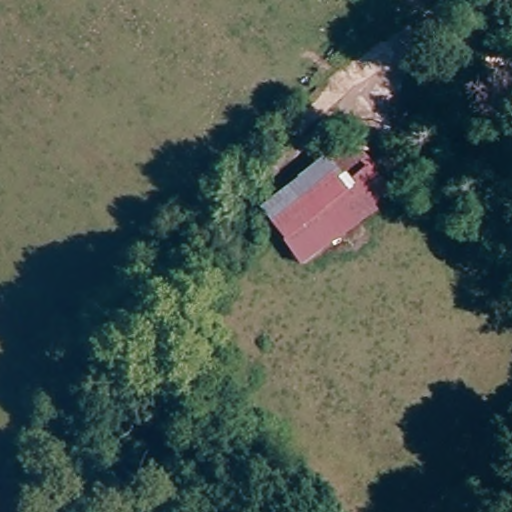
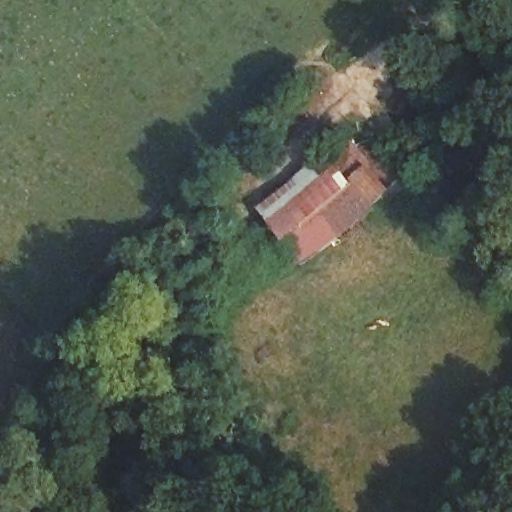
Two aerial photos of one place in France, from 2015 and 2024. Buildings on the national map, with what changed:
unchanged [(376,203),(378,207),(302,264),(282,237),(285,234),(270,216),(360,144),(371,159),(368,162),(390,189),(376,203)]

